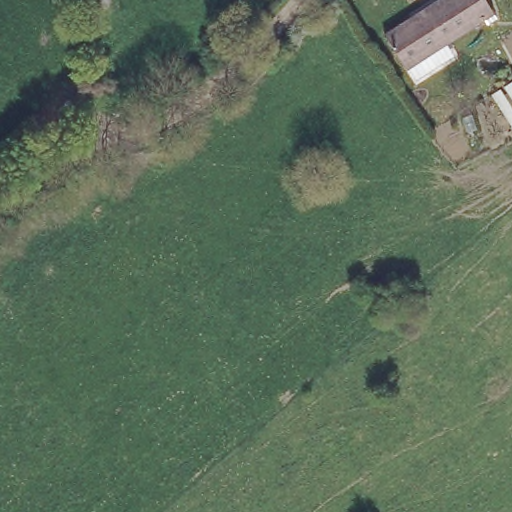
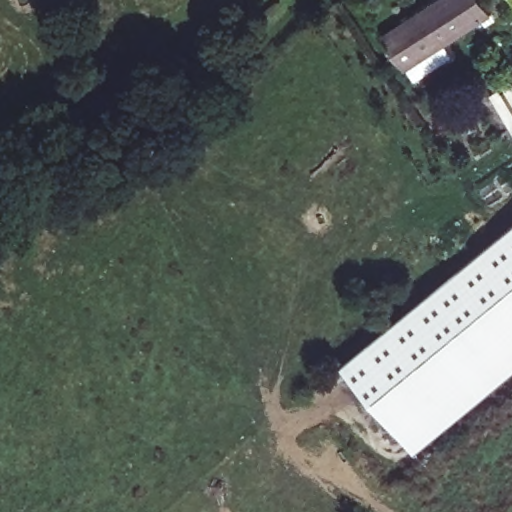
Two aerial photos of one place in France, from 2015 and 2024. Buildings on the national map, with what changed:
unchanged [(382,32),(407,16),(409,18),(432,4),(430,1),(432,0),(480,0),(487,12),(402,64),(382,32)]
new [(511,80),(512,81),(512,128),(490,95),(511,80)]
new [(341,365),(512,226),(512,374),(414,454),(341,365)]

